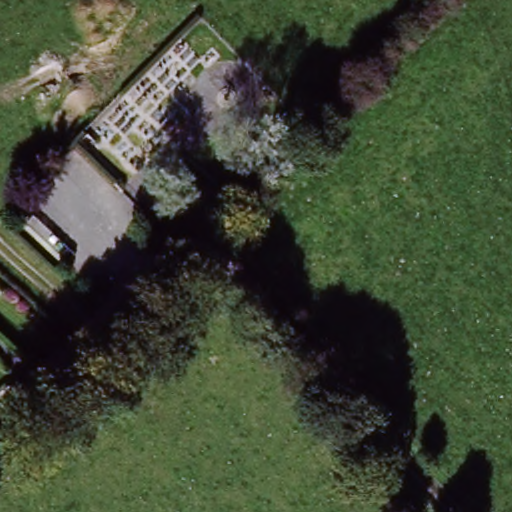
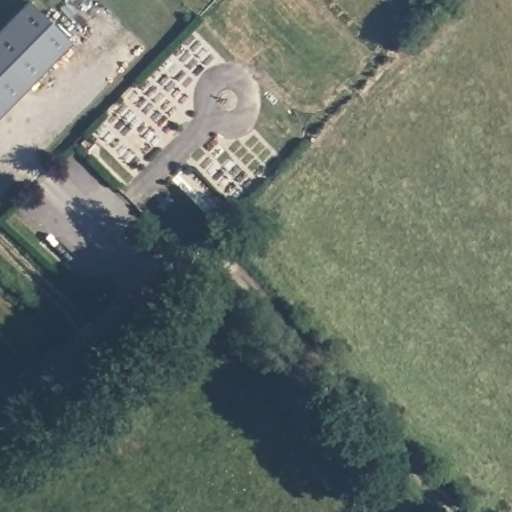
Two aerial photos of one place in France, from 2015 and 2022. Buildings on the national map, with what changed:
new [(29,3),(72,45),(0,119),(0,33),(29,3)]

